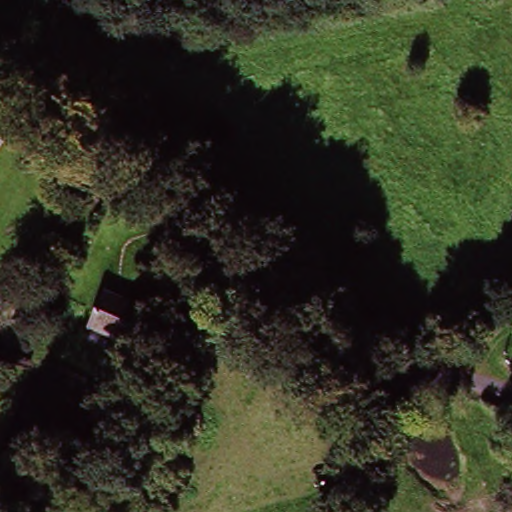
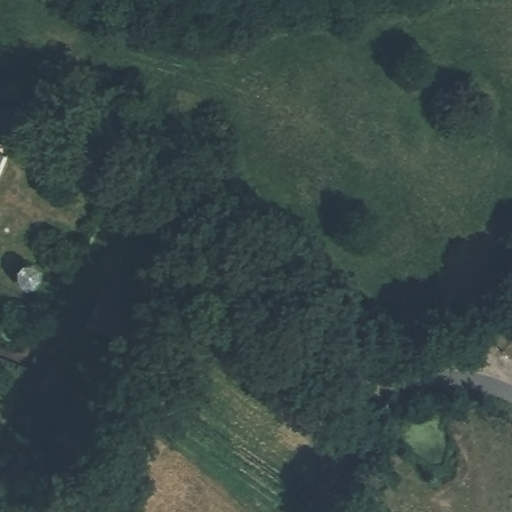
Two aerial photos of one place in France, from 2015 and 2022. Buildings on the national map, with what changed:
unchanged [(157,315),(143,351),(87,330),(102,293),(157,315)]
unchanged [(50,440),(83,452),(76,472),(43,457),(50,440)]

